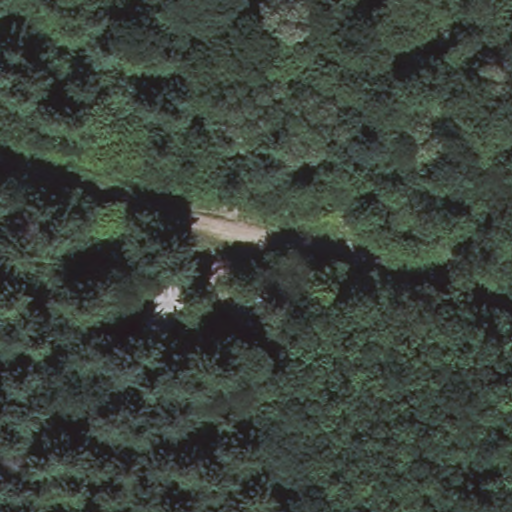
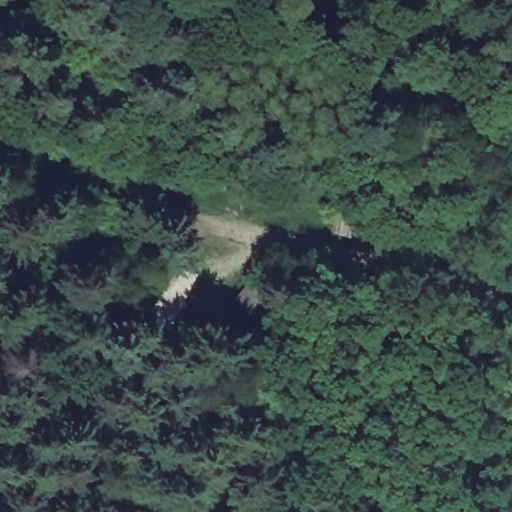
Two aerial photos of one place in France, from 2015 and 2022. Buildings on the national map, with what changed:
unchanged [(164,281),(186,289),(173,321),(155,311),(164,281)]

